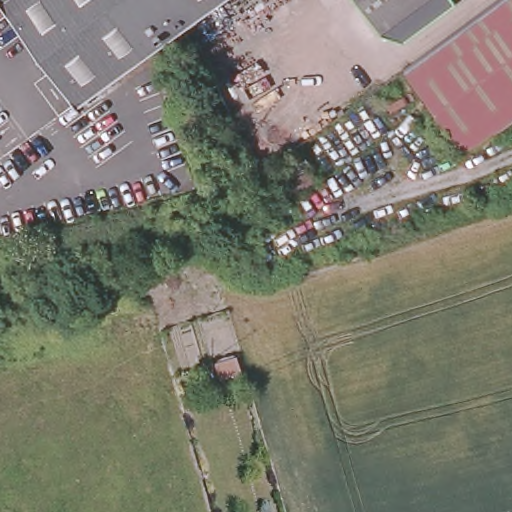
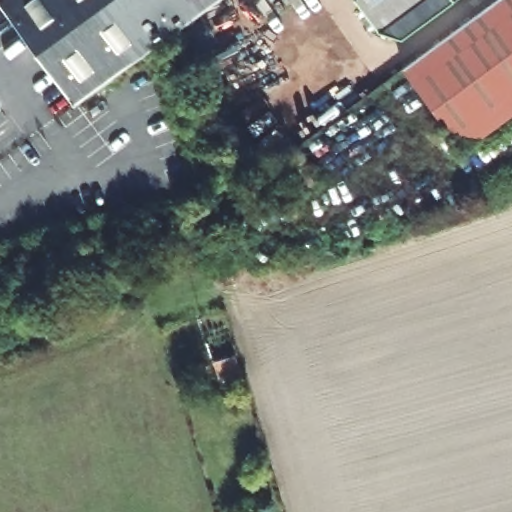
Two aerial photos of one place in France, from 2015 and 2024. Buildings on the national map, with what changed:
unchanged [(77,104),(1,0),(219,0),(77,104)]
unchanged [(358,0),(423,0),(382,31),(358,0)]
unchanged [(399,68),(491,0),(512,0),(512,111),(460,148),(399,68)]

